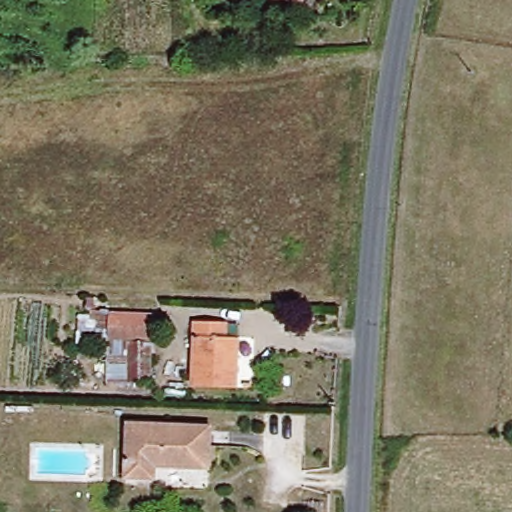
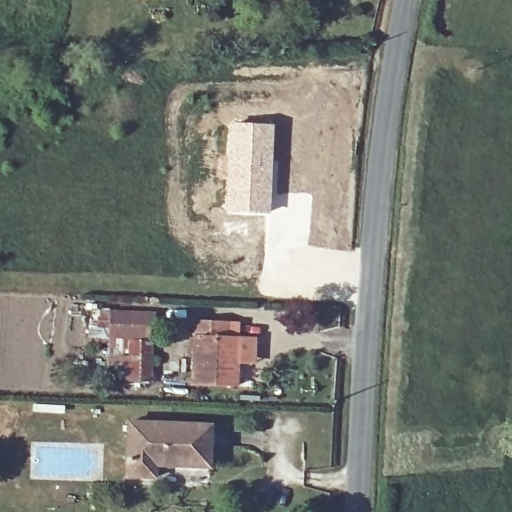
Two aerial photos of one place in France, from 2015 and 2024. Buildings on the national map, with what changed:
unchanged [(284,0),(304,0),(303,4),(284,0)]
new [(229,122),(273,124),(270,213),(225,212),(229,122)]
unchanged [(153,341),(107,340),(109,316),(153,318),(153,341)]
unchanged [(231,332),(240,333),(238,383),(192,381),(197,318),(230,320),(231,332)]
unchanged [(211,464),(150,462),(149,473),(124,472),(131,420),(214,425),(211,464)]

